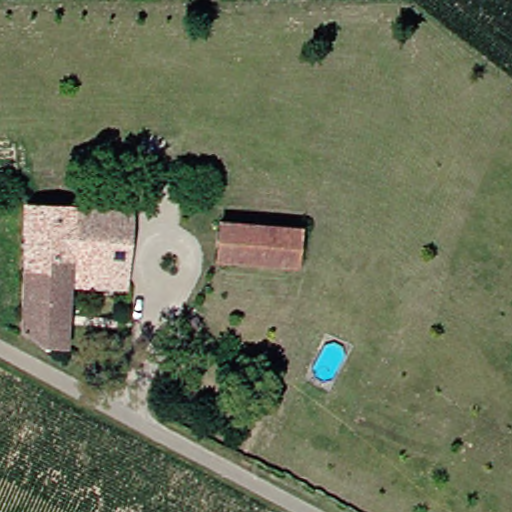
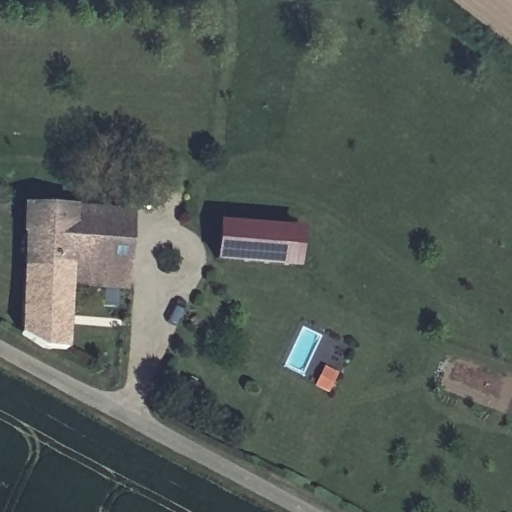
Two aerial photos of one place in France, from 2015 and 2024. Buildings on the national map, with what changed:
unchanged [(59,351),(24,342),(12,335),(9,205),(24,205),(24,194),(40,194),(40,205),(113,205),(114,283),(57,284),(59,351)]
unchanged [(205,256),(206,230),(288,234),(287,261),(205,256)]

